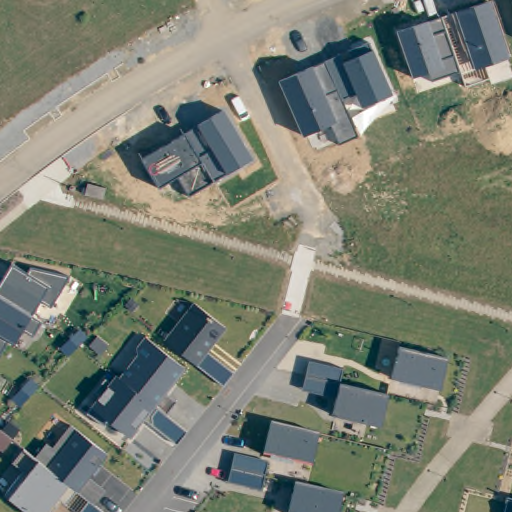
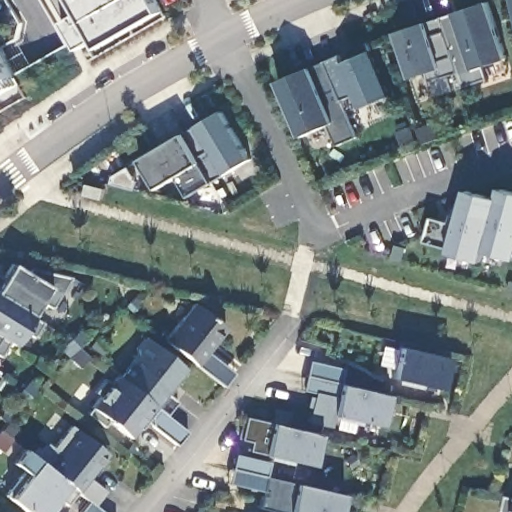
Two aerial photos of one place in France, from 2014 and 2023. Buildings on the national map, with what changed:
new [(95,40),(82,47),(67,21),(80,13),(72,0),(154,0),(161,12),(100,46),(95,40)]
unchanged [(488,2),(507,59),(485,66),(490,80),(466,87),(461,73),(475,69),(455,12),(488,2)]
unchanged [(427,23),(443,19),(460,72),(431,82),(427,73),(411,78),(397,34),(427,23)]
unchanged [(312,69),(338,57),(343,64),(351,61),(345,54),(367,44),(372,52),(392,96),(360,109),(354,95),(340,100),(356,137),(337,145),(332,124),(302,136),(278,82),(312,69)]
new [(0,95),(0,53),(19,85),(0,95)]
unchanged [(185,135),(198,127),(223,112),(252,159),(226,174),(187,196),(178,177),(158,189),(142,160),(185,135)]
new [(497,198),(499,188),(512,191),(512,259),(485,251),(482,261),(448,252),(450,249),(425,242),(431,217),(456,224),(465,190),(497,198)]
unchanged [(12,266),(30,277),(32,270),(70,277),(51,308),(40,300),(31,317),(42,324),(32,338),(22,331),(14,346),(7,342),(0,354),(0,276),(5,278),(12,266)]
unchanged [(194,305),(226,328),(207,353),(233,374),(222,387),(165,341),(194,305)]
unchanged [(96,400),(100,396),(96,395),(107,380),(111,383),(117,375),(121,378),(137,355),(135,350),(145,339),(184,370),(164,395),(176,403),(166,416),(186,432),(176,445),(143,419),(131,440),(108,422),(102,425),(89,415),(96,410),(90,406),(96,400)]
unchanged [(401,349),(447,360),(439,390),(391,378),(401,349)]
unchanged [(310,363),(341,370),(340,385),(387,396),(380,426),(332,415),(336,397),(302,390),(310,363)]
unchanged [(272,425),(271,425),(320,435),(312,466),(264,455),(272,425)]
unchanged [(22,478),(27,473),(12,463),(23,451),(38,461),(47,445),(52,448),(70,427),(79,434),(108,455),(87,480),(105,492),(94,505),(102,512),(81,512),(89,502),(77,491),(67,505),(60,501),(51,512),(26,512),(7,498),(11,493),(0,486),(0,483),(10,470),(22,478)]
unchanged [(236,455),(270,463),(263,492),(227,483),(236,455)]
unchanged [(297,485),(344,496),(340,512),(290,512),(297,485)]
unchanged [(509,500),(512,501),(512,512),(505,512),(509,500)]

